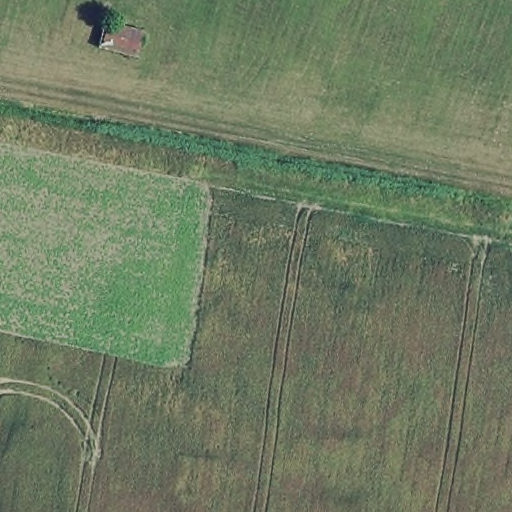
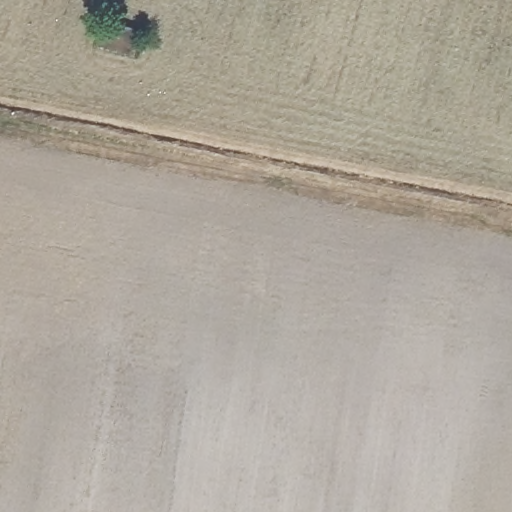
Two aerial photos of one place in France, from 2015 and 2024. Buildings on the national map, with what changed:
unchanged [(98,23),(140,30),(134,58),(93,47),(98,23)]

